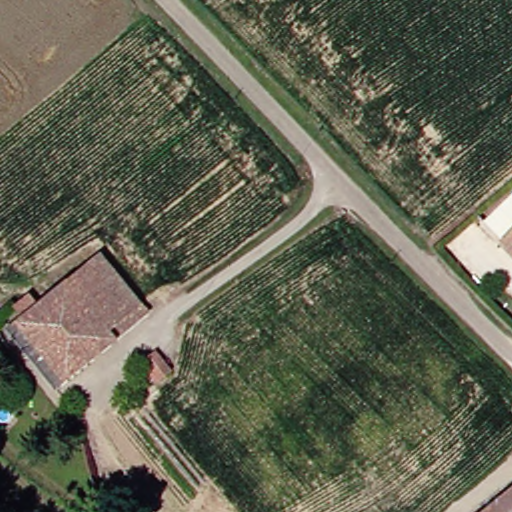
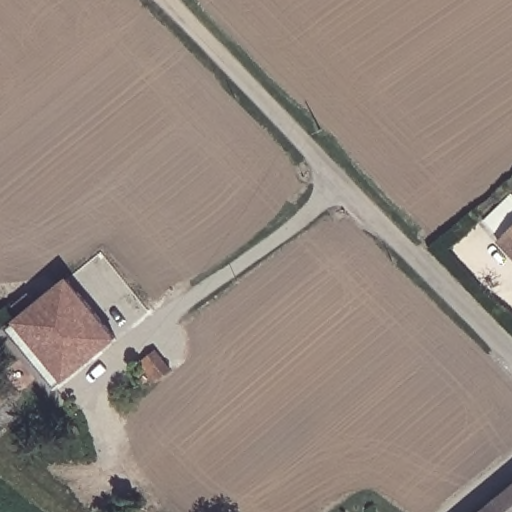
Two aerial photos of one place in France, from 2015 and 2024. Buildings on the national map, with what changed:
unchanged [(20,315),(102,250),(129,230),(179,287),(70,373),(20,315)]
unchanged [(512,235),(512,246),(506,240),(512,235)]
unchanged [(55,384),(5,326),(20,315),(70,373),(55,384)]
unchanged [(512,512),(472,512),(512,480),(512,512)]

